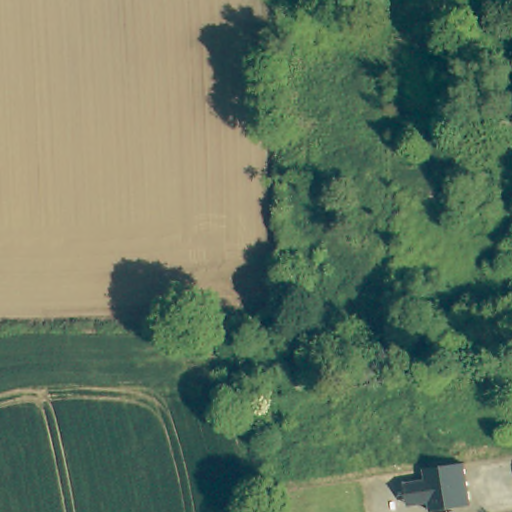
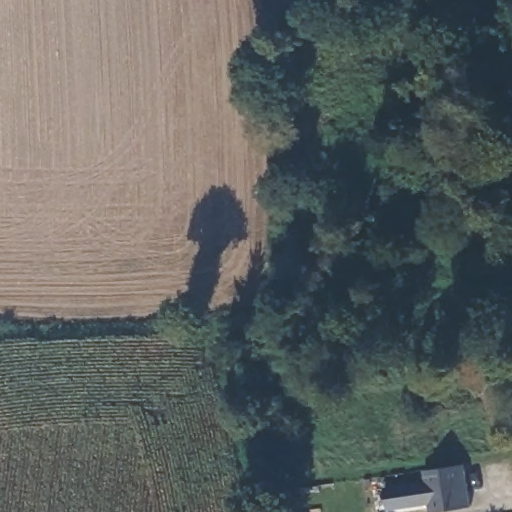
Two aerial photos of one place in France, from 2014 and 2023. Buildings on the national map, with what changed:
unchanged [(435,512),(432,512),(431,505),(410,507),(406,483),(427,481),(426,470),(467,464),(473,506),(435,512)]

